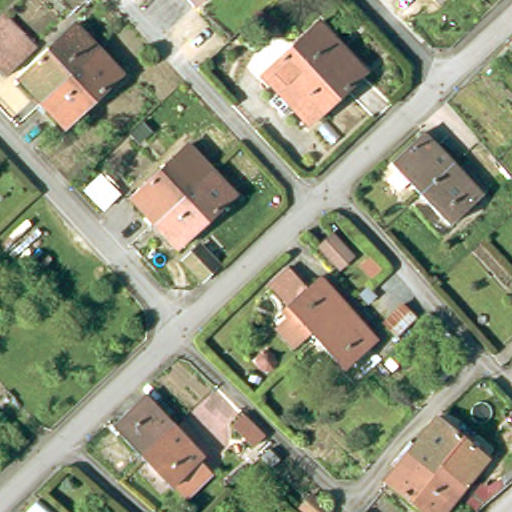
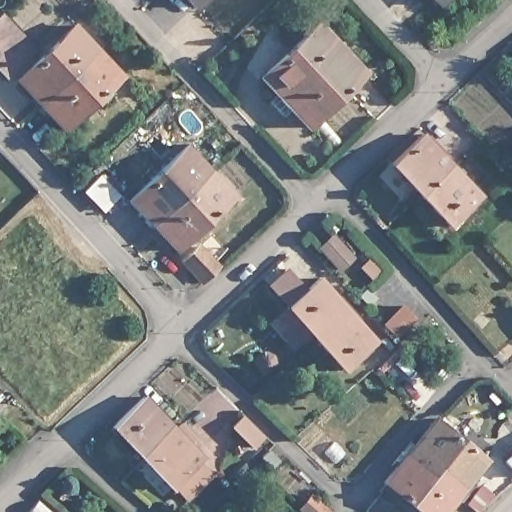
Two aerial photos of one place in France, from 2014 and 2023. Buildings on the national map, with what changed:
unchanged [(196,14),(183,0),(211,0),(196,14)]
unchanged [(438,10),(429,0),(450,0),(438,10)]
unchanged [(5,78),(0,74),(0,25),(2,23),(30,54),(5,78)]
unchanged [(317,29),(365,79),(307,135),(259,83),(317,29)]
unchanged [(99,56),(40,111),(16,86),(76,32),(99,56)]
unchanged [(99,56),(123,82),(65,137),(40,111),(99,56)]
unchanged [(425,140),(453,171),(421,200),(393,169),(425,140)]
unchanged [(211,175),(151,231),(127,205),(187,150),(211,175)]
unchanged [(453,171),(482,203),(451,232),(421,200),(453,171)]
unchanged [(211,175),(235,201),(175,257),(151,231),(211,175)]
unchanged [(94,177),(111,196),(96,209),(79,191),(94,177)]
unchanged [(319,250),(332,239),(348,257),(335,268),(319,250)]
unchanged [(211,261),(192,278),(177,263),(196,245),(211,261)]
unchanged [(276,333),(287,323),(282,317),(287,313),(281,307),(268,293),(289,274),(301,288),(313,276),(344,309),(312,339),(308,335),(292,350),(276,333)]
unchanged [(366,295),(374,303),(369,307),(362,299),(366,295)]
unchanged [(404,307),(414,318),(395,335),(385,324),(404,307)]
unchanged [(344,309),(373,340),(341,370),(312,339),(344,309)]
unchanged [(147,402),(177,433),(145,464),(114,432),(147,402)]
unchanged [(406,457),(435,423),(485,464),(457,498),(406,457)]
unchanged [(241,432),(249,425),(250,424),(263,438),(262,438),(255,446),(241,432)]
unchanged [(177,433),(182,439),(186,435),(192,441),(188,445),(206,464),(201,469),(212,481),(188,503),(177,491),(175,494),(145,464),(177,433)]
unchanged [(280,454),(281,456),(266,472),(254,460),(266,449),(275,458),(280,454)]
unchanged [(416,512),(383,484),(406,457),(457,498),(446,512),(416,512)]
unchanged [(329,512),(305,512),(298,505),(310,494),(329,512)]

